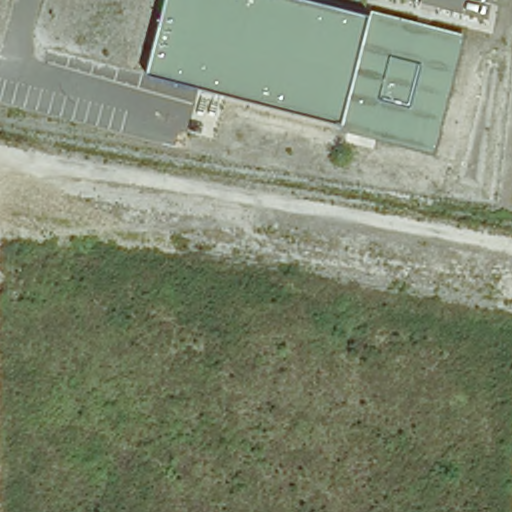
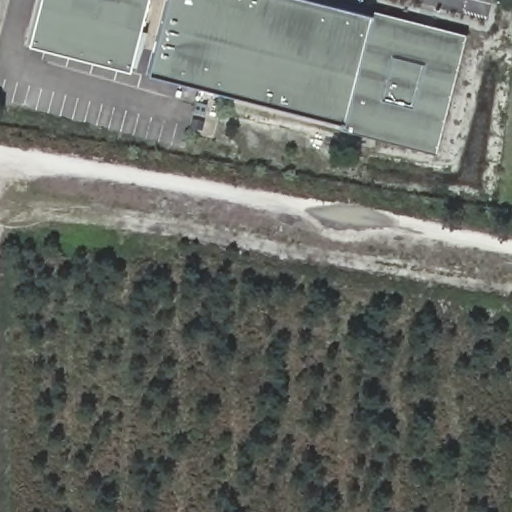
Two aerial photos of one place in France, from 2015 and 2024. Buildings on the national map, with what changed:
new [(37,0),(145,0),(126,71),(26,44),(37,0)]
unchanged [(165,0),(316,0),(366,12),(368,9),(465,37),(436,156),(337,131),(338,124),(147,72),(165,0)]

